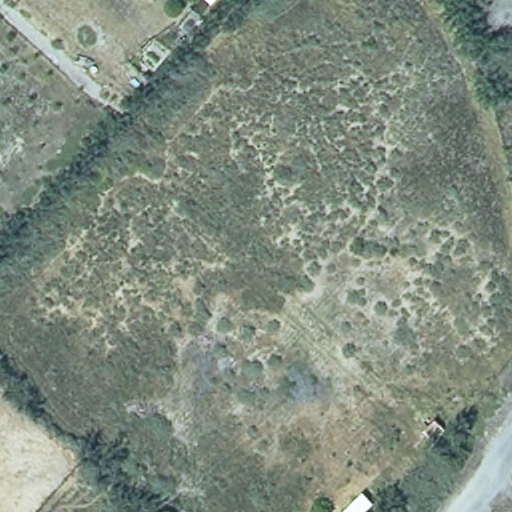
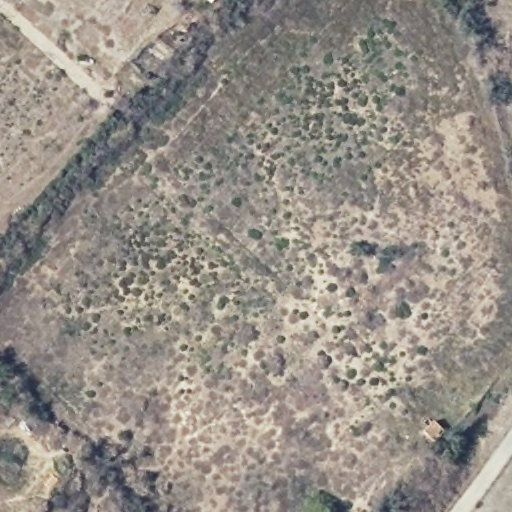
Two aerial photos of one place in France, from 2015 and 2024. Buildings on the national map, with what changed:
unchanged [(448,432),(434,446),(421,434),(437,419),(448,432)]

